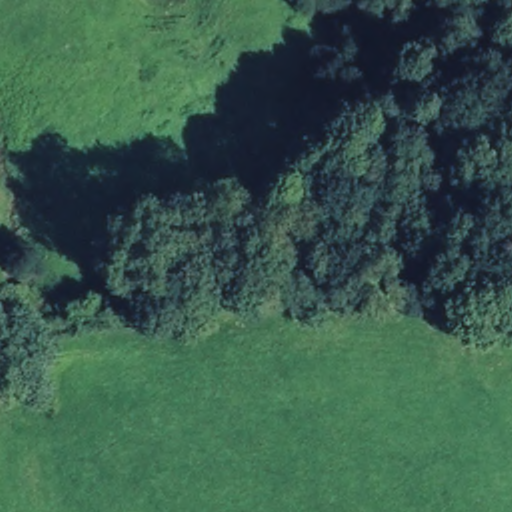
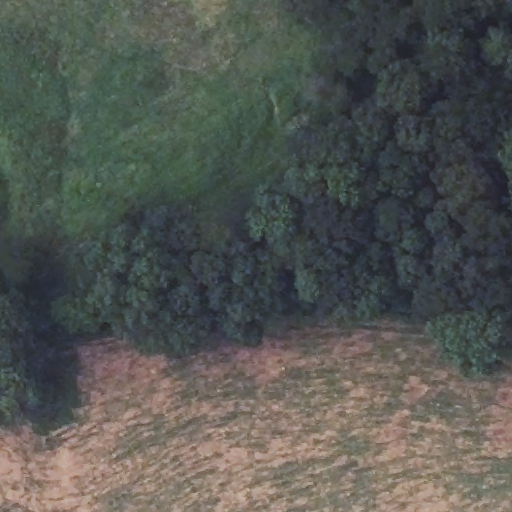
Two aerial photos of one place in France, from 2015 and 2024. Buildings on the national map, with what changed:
[]

